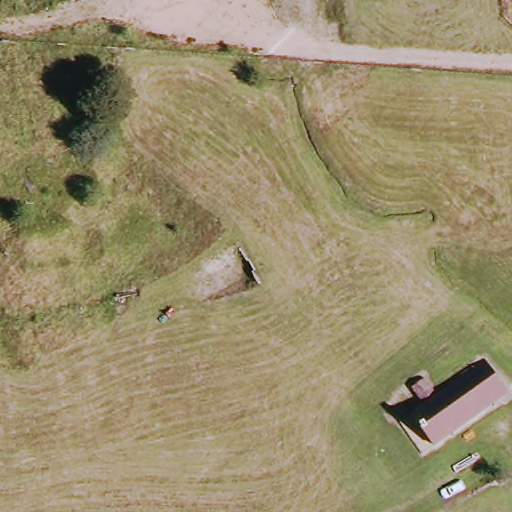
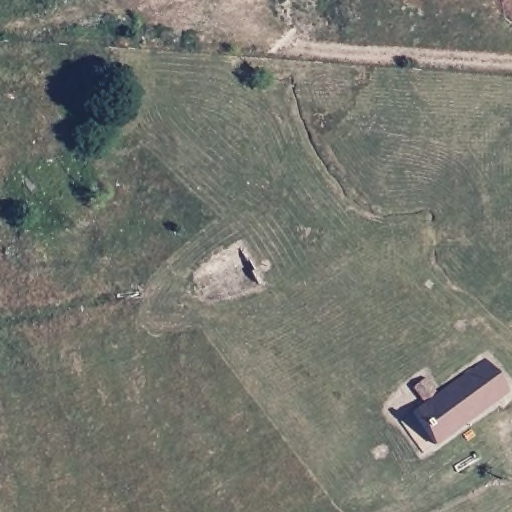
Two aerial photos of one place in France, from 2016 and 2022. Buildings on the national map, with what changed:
unchanged [(430,402),(417,388),(428,379),(442,395),(490,358),(512,390),(512,392),(438,448),(414,414),(430,402)]

